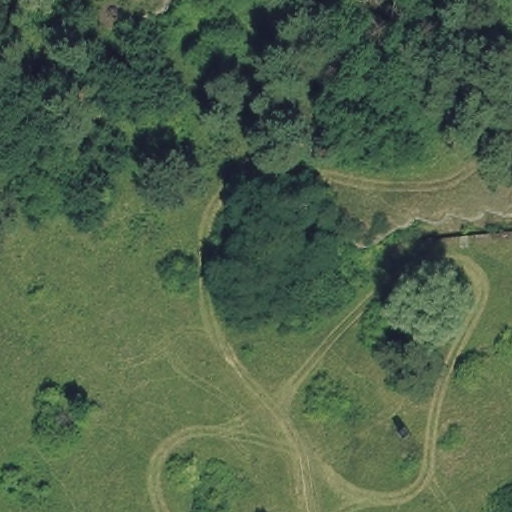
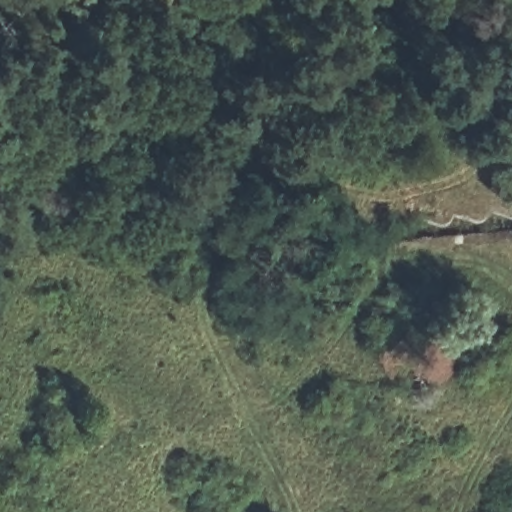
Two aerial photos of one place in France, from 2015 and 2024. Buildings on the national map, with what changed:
unchanged [(159,11),(133,20),(126,61),(89,50),(55,0),(164,0),(159,11)]
unchanged [(473,220),(446,207),(437,224),(417,212),(411,230),(371,255),(316,204),(319,175),(484,152),(512,158),(512,197),(507,212),(481,202),(473,220)]

